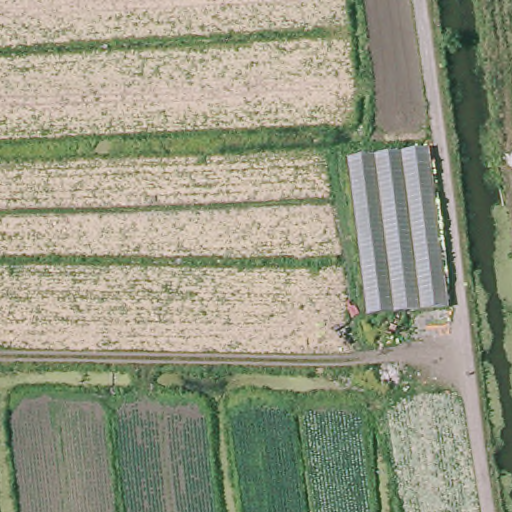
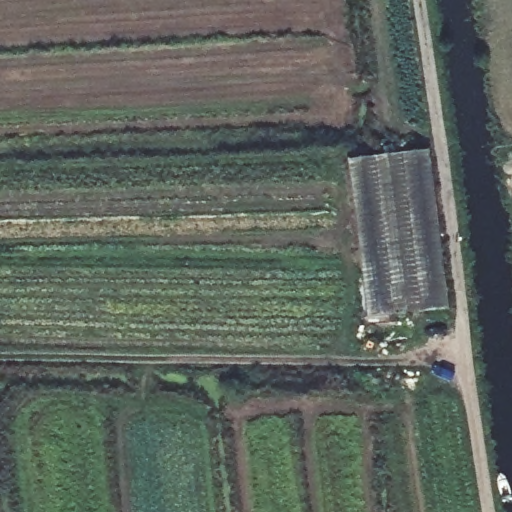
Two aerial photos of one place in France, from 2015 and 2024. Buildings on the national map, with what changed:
unchanged [(427,151),(449,309),(367,320),(349,163),(427,151)]

